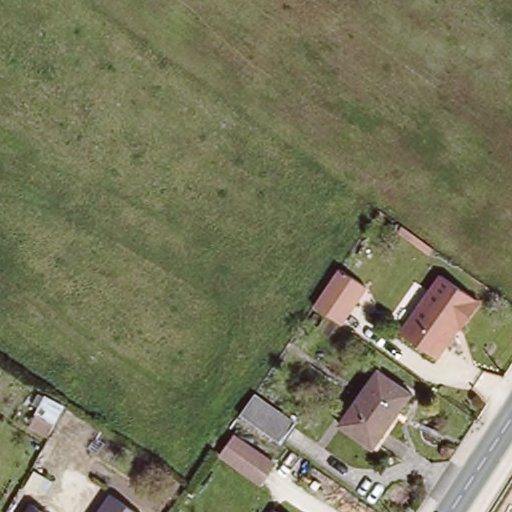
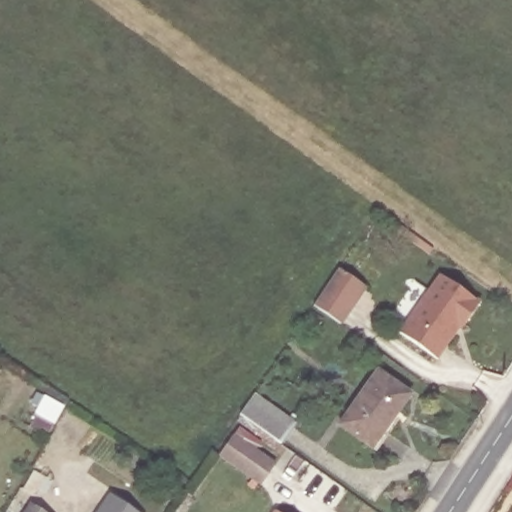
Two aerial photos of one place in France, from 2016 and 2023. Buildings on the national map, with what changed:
unchanged [(442,273),(482,300),(463,327),(458,323),(433,358),(398,333),(442,273)]
unchanged [(363,291),(341,320),(322,305),(343,276),(363,291)]
unchanged [(419,396),(383,448),(337,416),(373,364),(419,396)]
unchanged [(292,419),(275,443),(238,418),(255,393),(292,419)]
unchanged [(59,417),(48,435),(35,427),(31,424),(43,406),(46,408),(59,417)]
unchanged [(273,460),(259,480),(219,452),(234,432),(273,460)]
unchanged [(145,512),(95,512),(108,490),(145,512)]
unchanged [(58,512),(23,512),(31,498),(58,512)]
unchanged [(279,512),(268,512),(271,507),(279,512)]

